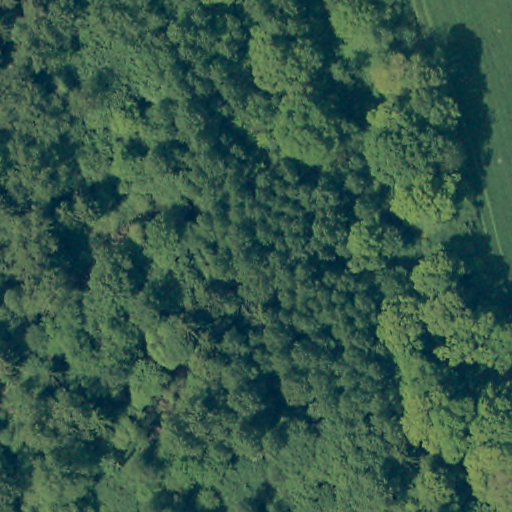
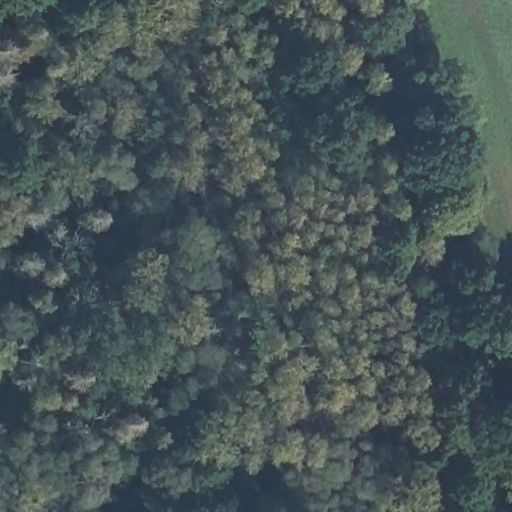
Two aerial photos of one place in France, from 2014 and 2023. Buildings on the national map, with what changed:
[]

